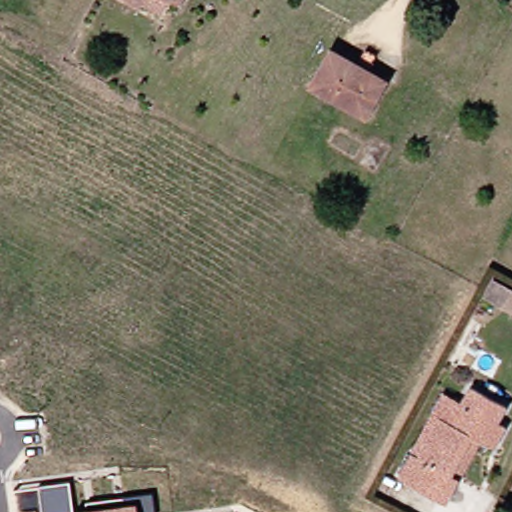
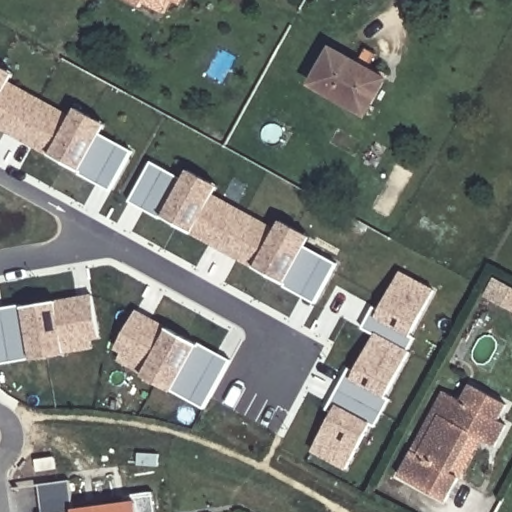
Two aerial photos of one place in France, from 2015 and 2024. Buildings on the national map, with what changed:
unchanged [(155,13),(136,1),(133,6),(121,0),(163,0),(155,13)]
new [(181,5),(172,0),(183,0),(181,5)]
unchanged [(381,80),(361,115),(307,84),(327,49),(381,80)]
new [(62,163),(50,154),(0,127),(0,66),(14,73),(11,79),(73,114),(77,108),(106,124),(102,132),(134,151),(111,190),(81,172),(62,163)]
new [(285,284),(256,268),(192,233),(173,224),(164,218),(131,201),(152,162),(184,179),(189,170),(219,186),(215,193),(278,227),(282,220),(311,237),(306,247),(337,263),(316,303),(285,284)]
new [(332,413),(329,411),(327,410),(350,368),(356,370),(376,334),(364,328),(375,306),(381,309),(402,271),(436,289),(410,336),(415,338),(408,350),(411,351),(386,397),(391,399),(376,426),(371,423),(346,470),(313,451),(332,413)]
new [(485,296),(495,277),(512,286),(512,311),(485,296)]
new [(23,306),(58,300),(93,294),(101,339),(93,340),(94,349),(66,355),(34,360),(0,365),(0,309),(21,304),(23,306)]
new [(138,309),(169,328),(199,345),(201,343),(232,360),(204,409),(172,391),(144,375),(119,360),(123,353),(116,349),(138,309)]
unchanged [(502,409),(493,425),(502,430),(490,452),(475,444),(468,440),(447,478),(455,482),(441,507),(394,480),(400,469),(407,456),(414,459),(436,420),(446,426),(466,389),(502,409)]
unchanged [(42,512),(39,484),(70,480),(74,511),(87,509),(86,501),(93,500),(153,492),(156,512),(42,512)]

